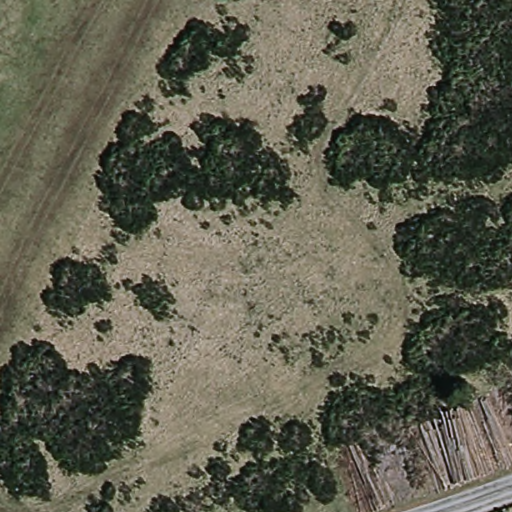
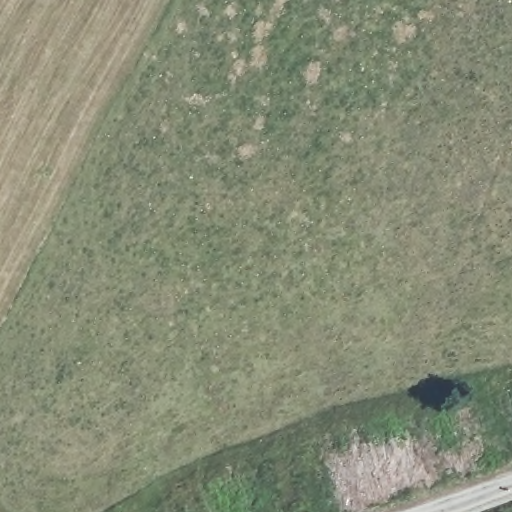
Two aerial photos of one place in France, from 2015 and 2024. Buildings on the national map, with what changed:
[]

